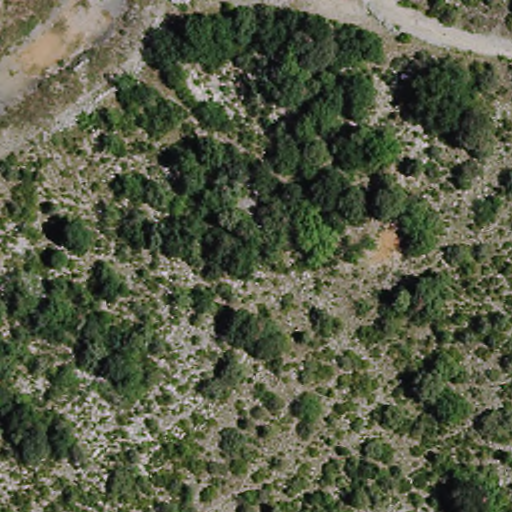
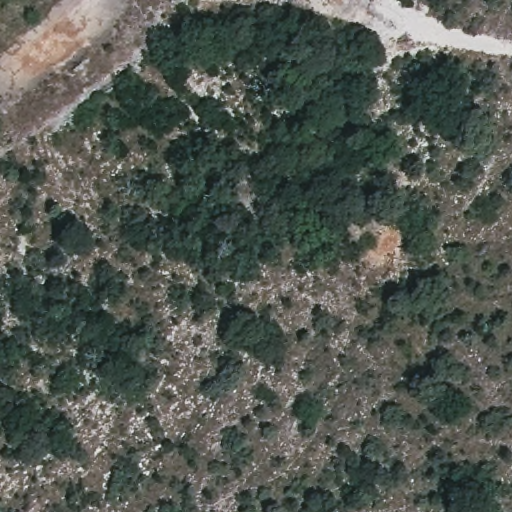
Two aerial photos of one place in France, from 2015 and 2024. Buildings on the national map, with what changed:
[]

